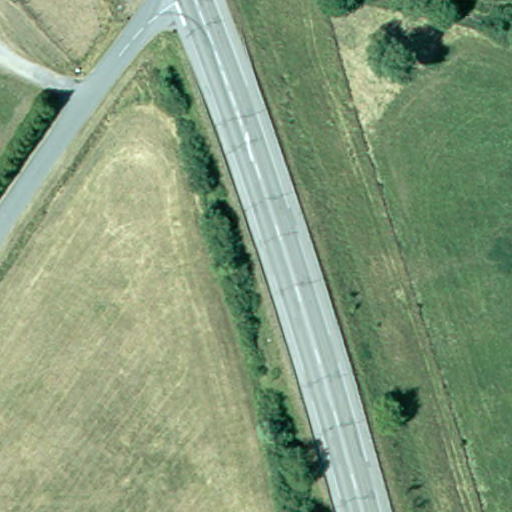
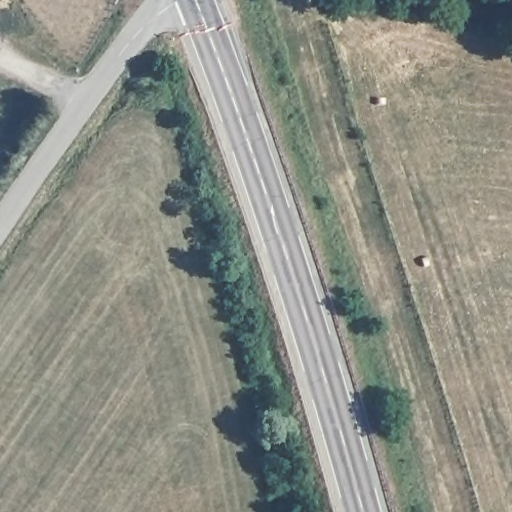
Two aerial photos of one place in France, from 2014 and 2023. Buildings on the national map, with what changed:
[]

